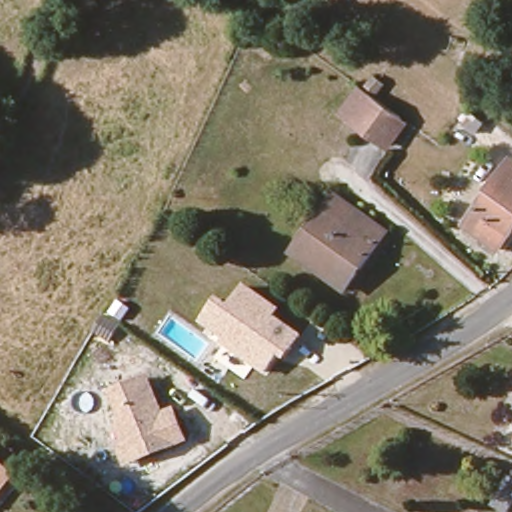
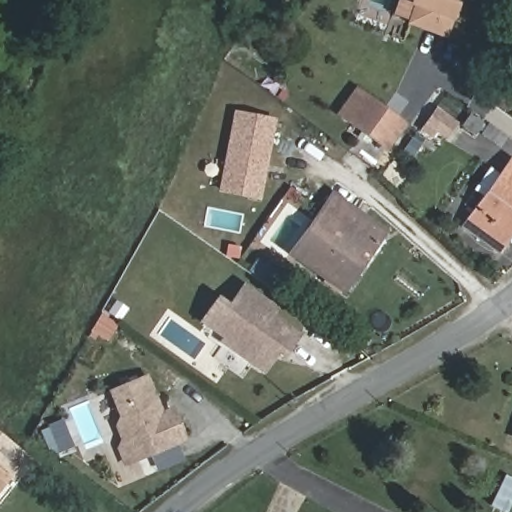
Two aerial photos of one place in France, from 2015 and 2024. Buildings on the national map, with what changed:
new [(446,37),(407,24),(413,6),(410,5),(412,0),(460,0),(452,21),(446,37)]
unchanged [(380,147),(336,115),(355,89),(398,120),(405,125),(386,151),(380,147)]
new [(240,115),(276,122),(261,199),(225,192),(240,115)]
unchanged [(481,135),(470,127),(479,116),(490,124),(481,135)]
unchanged [(495,252),(461,227),(507,162),(512,165),(512,229),(495,252)]
unchanged [(340,291),(288,254),(330,195),(382,232),(340,291)]
unchanged [(273,315),(301,335),(282,360),(276,356),(263,374),(219,342),(221,337),(198,322),(216,296),(227,304),(242,281),(277,307),(273,315)]
unchanged [(186,442),(124,467),(115,445),(120,442),(114,423),(117,417),(106,391),(147,375),(161,410),(172,406),(186,442)]
unchanged [(0,487),(0,471),(8,477),(0,487)]
unchanged [(503,512),(500,512),(488,506),(503,477),(512,481),(512,495),(503,512)]

